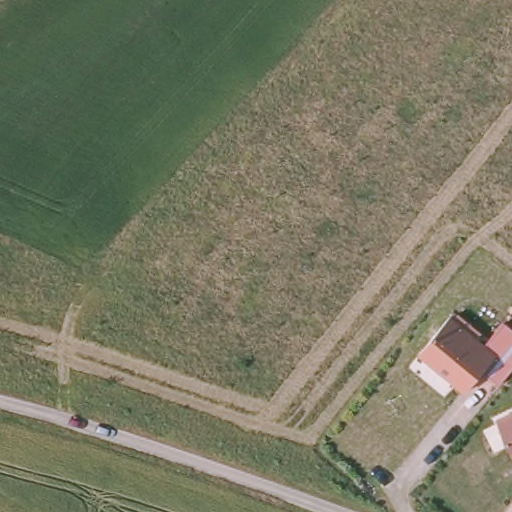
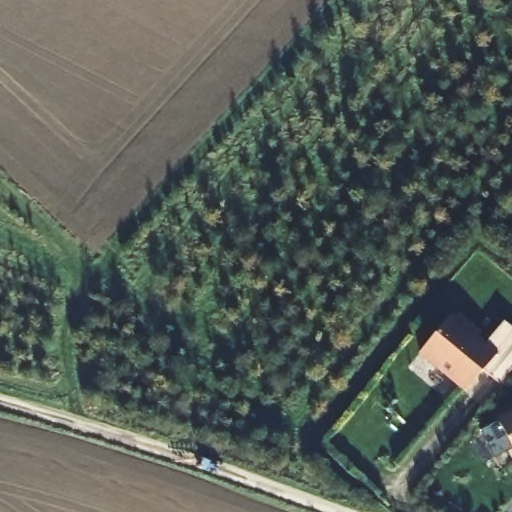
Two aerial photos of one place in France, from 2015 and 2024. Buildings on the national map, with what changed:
unchanged [(493,356),(467,387),(425,352),(451,321),(493,356)]
unchanged [(494,411),(512,404),(512,449),(508,450),(494,411)]

